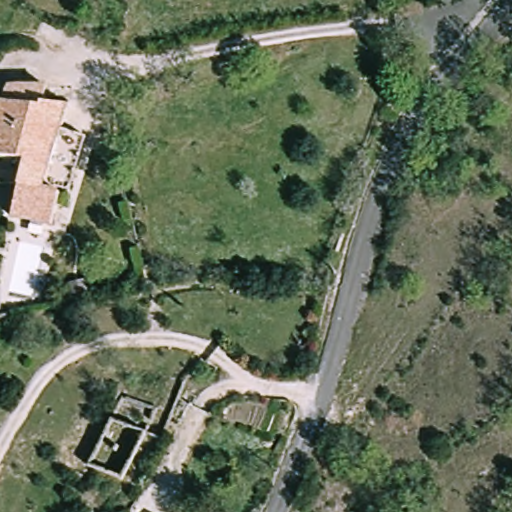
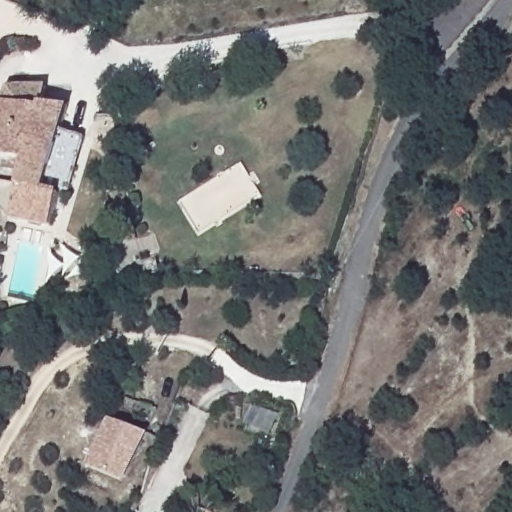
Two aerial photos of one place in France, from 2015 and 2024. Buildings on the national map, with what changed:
unchanged [(15,80),(45,91),(42,100),(60,105),(58,119),(85,128),(71,180),(62,178),(53,208),(14,195),(17,182),(0,175),(0,88),(15,80)]
new [(110,420),(143,433),(148,434),(123,483),(86,468),(110,420)]

